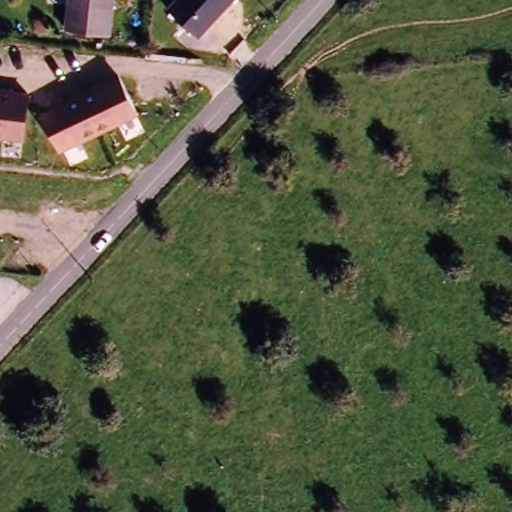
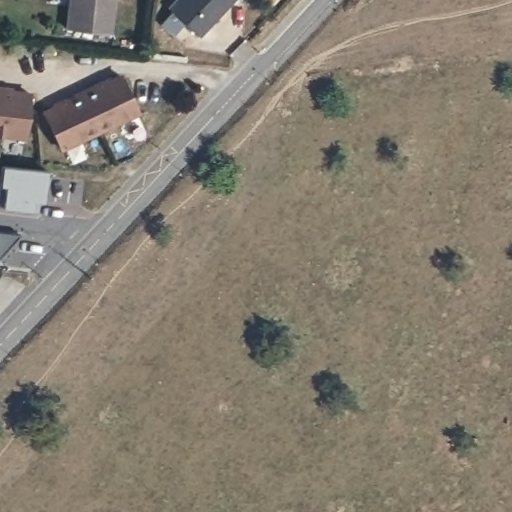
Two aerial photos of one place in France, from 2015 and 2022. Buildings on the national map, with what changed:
unchanged [(65,27),(68,0),(113,0),(108,31),(65,27)]
unchanged [(167,8),(175,0),(235,0),(200,38),(167,8)]
unchanged [(140,113),(62,152),(42,110),(121,72),(140,113)]
unchanged [(27,140),(0,137),(0,87),(32,91),(27,140)]
new [(44,202),(37,201),(36,210),(2,206),(4,185),(0,185),(0,170),(0,165),(47,170),(44,202)]
new [(0,258),(0,232),(22,235),(0,258)]

